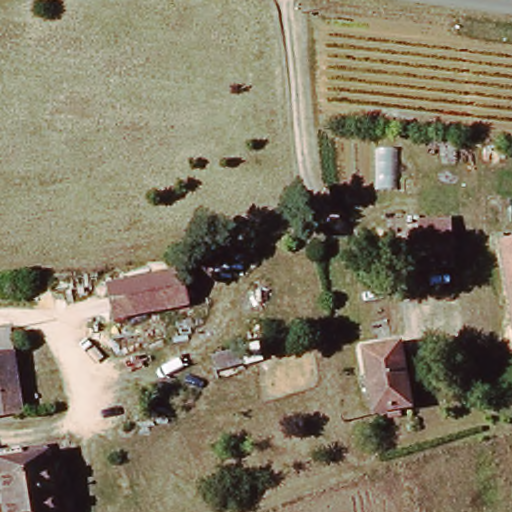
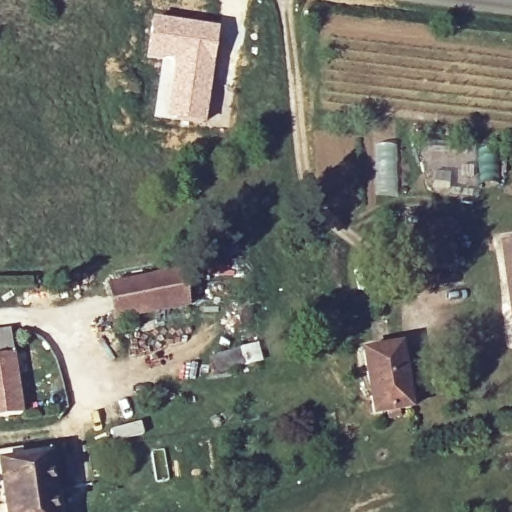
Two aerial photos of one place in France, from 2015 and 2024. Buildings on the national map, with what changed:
new [(152,17),(220,27),(205,124),(154,116),(162,59),(145,56),(152,17)]
unchanged [(422,238),(422,216),(455,213),(457,235),(422,238)]
unchanged [(496,241),(512,239),(512,341),(505,341),(496,241)]
unchanged [(206,264),(215,298),(115,322),(110,283),(206,264)]
unchanged [(20,418),(0,421),(0,336),(9,334),(20,418)]
unchanged [(409,413),(368,415),(364,353),(405,351),(409,413)]
unchanged [(58,512),(10,512),(10,504),(0,506),(0,446),(25,442),(27,464),(54,462),(58,512)]

